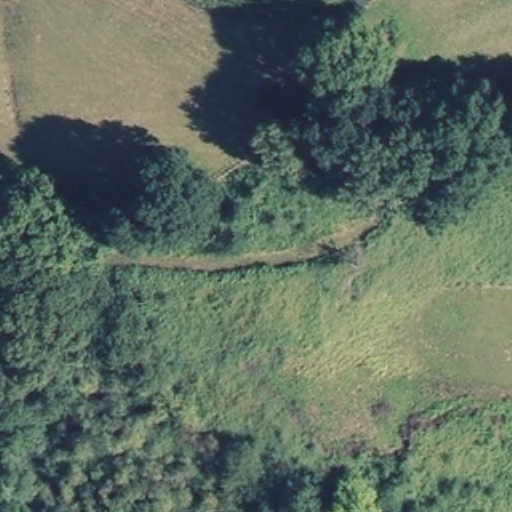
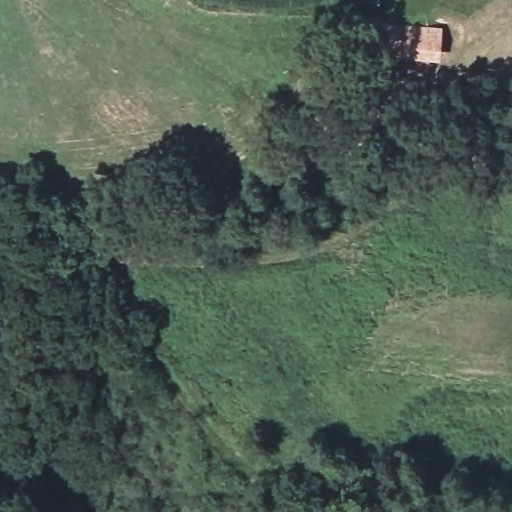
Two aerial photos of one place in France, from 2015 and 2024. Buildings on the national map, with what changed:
new [(389,56),(388,32),(383,32),(383,26),(442,30),(440,60),(389,56)]

